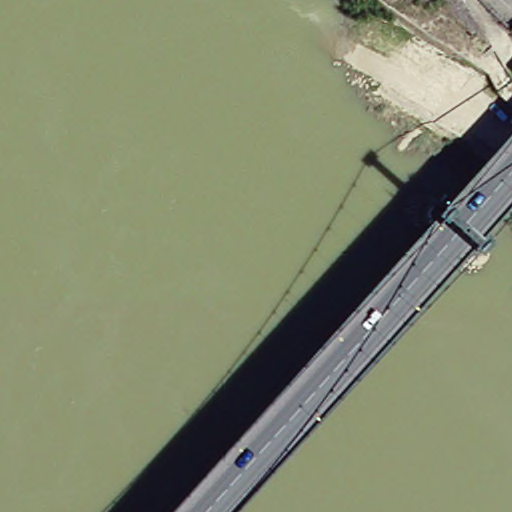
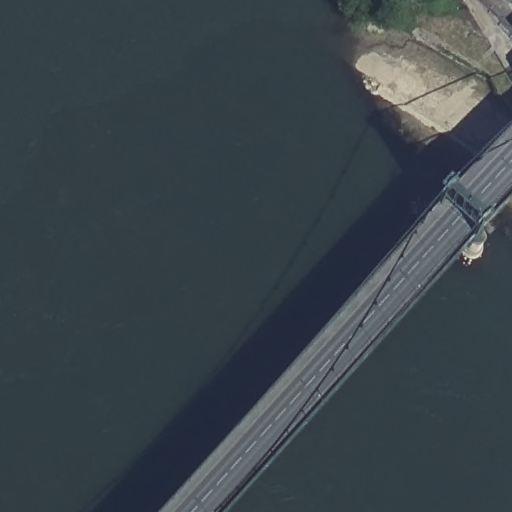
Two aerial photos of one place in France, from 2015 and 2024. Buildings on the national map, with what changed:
unchanged [(511,30),(512,29),(512,32),(511,30)]

